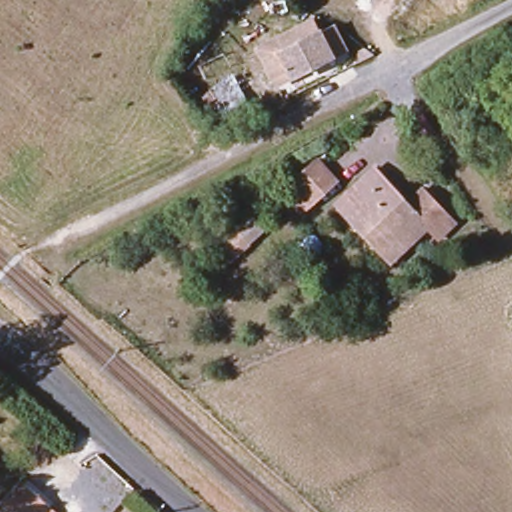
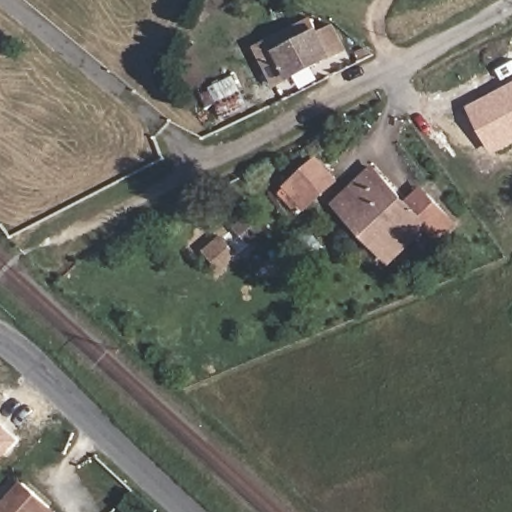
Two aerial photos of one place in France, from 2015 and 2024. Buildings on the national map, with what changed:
unchanged [(275,90),(262,63),(275,56),(270,45),(310,25),(315,35),(321,31),(336,60),(275,90)]
new [(512,83),(512,145),(493,155),(468,105),(512,83)]
unchanged [(287,192),(317,165),(331,182),(316,196),(320,202),(306,215),(287,192)]
unchanged [(336,200),(368,169),(401,205),(417,189),(423,195),(448,222),(430,239),(418,227),(380,260),(360,237),(331,204),(336,200)]
new [(0,463),(0,421),(21,440),(0,463)]
unchanged [(19,490),(46,512),(2,512),(19,490)]

